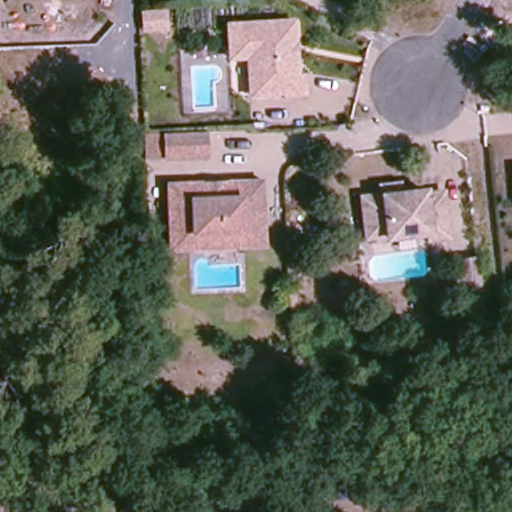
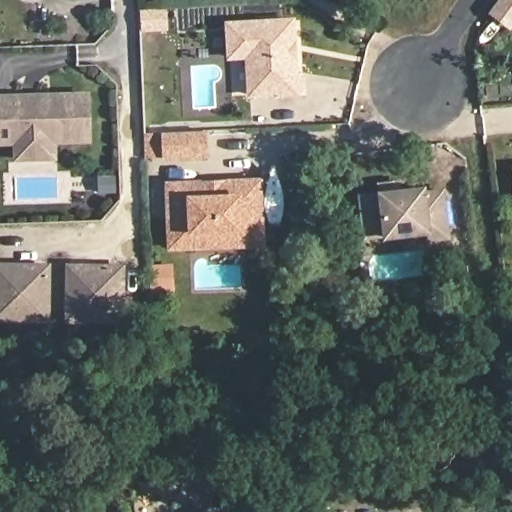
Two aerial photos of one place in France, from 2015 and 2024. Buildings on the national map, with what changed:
new [(512,27),(496,14),(507,0),(512,0),(512,27)]
unchanged [(299,71),(307,72),(308,94),(251,100),(246,60),(228,60),(224,23),(295,17),(299,71)]
new [(56,144),(57,162),(14,162),(14,145),(0,145),(0,93),(91,91),(92,143),(56,144)]
unchanged [(209,157),(150,161),(147,130),(207,129),(209,157)]
unchanged [(266,247),(168,252),(164,184),(263,176),(266,247)]
unchanged [(444,187),(449,239),(431,241),(426,236),(386,240),(365,242),(359,194),(377,192),(377,182),(400,179),(399,190),(425,187),(444,187)]
unchanged [(482,294),(459,298),(452,259),(477,256),(482,294)]
new [(51,322),(0,322),(0,261),(51,262),(51,322)]
new [(126,262),(125,323),(65,322),(66,263),(126,262)]

